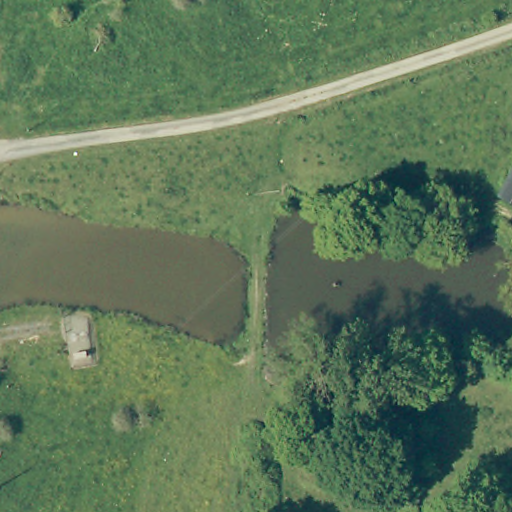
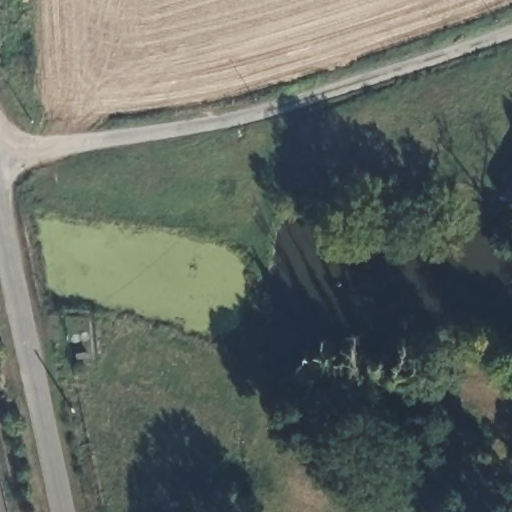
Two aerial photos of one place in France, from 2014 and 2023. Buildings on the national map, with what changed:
unchanged [(501,198),(512,178),(512,204),(501,198)]

